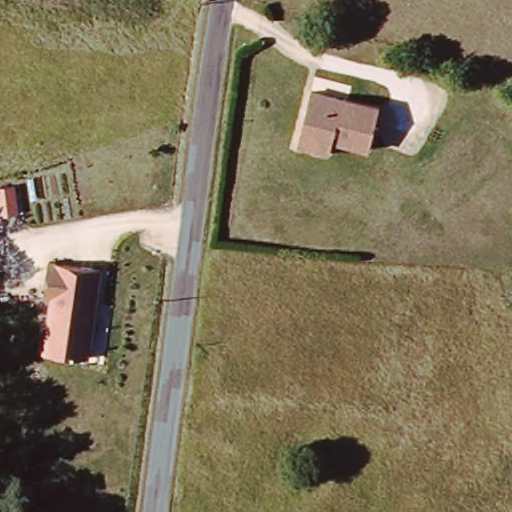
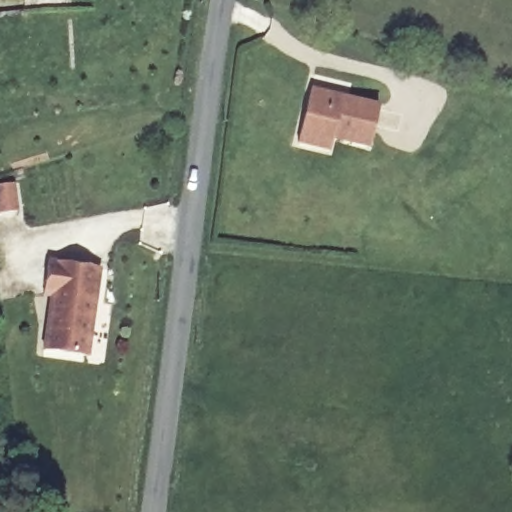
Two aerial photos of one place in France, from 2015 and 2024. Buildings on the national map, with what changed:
unchanged [(304,142),(306,132),(315,89),(382,107),(375,142),(373,149),(337,137),(334,152),(304,142)]
unchanged [(0,206),(0,189),(16,187),(19,216),(1,217),(0,206)]
unchanged [(45,297),(50,263),(102,271),(90,360),(46,353),(54,299),(45,297)]

